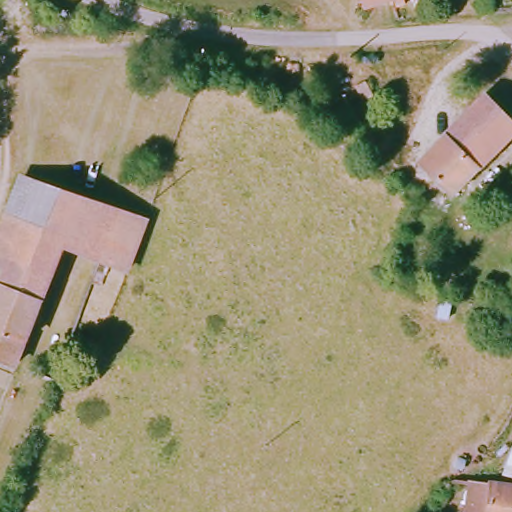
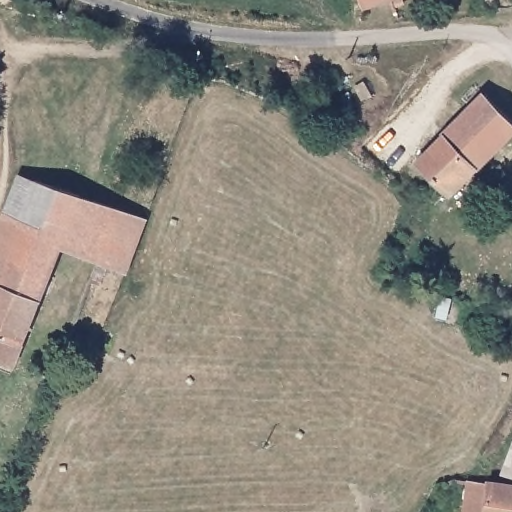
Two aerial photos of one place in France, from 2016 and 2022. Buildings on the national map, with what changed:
unchanged [(362,0),(398,0),(366,10),(362,0)]
unchanged [(447,192),(417,162),(483,94),(512,121),(512,128),(447,192)]
unchanged [(0,234),(21,180),(38,185),(4,273),(0,272),(0,234)]
unchanged [(123,271),(60,247),(13,368),(0,363),(0,282),(4,273),(38,185),(141,222),(123,271)]
unchanged [(500,486),(507,452),(512,452),(512,487),(500,486)]
unchanged [(512,500),(512,512),(477,512),(480,495),(512,500)]

